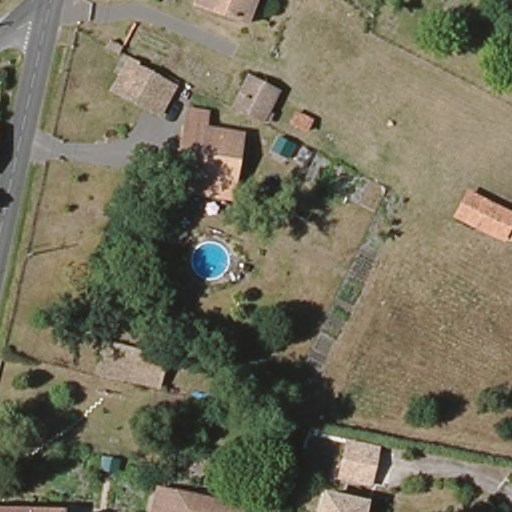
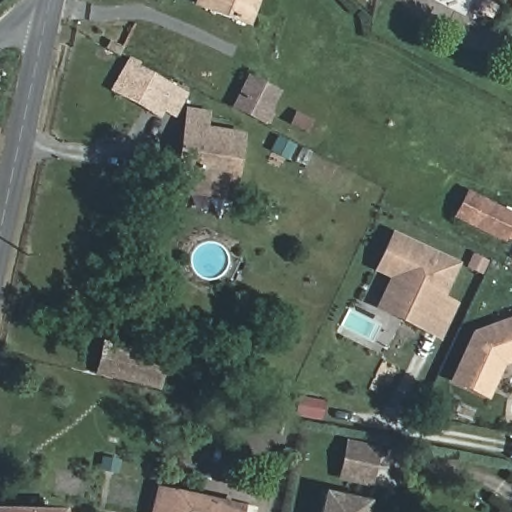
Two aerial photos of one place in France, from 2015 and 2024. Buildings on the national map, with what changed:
unchanged [(244,24),(199,8),(193,6),(195,0),(252,0),(244,24)]
unchanged [(169,82),(146,121),(131,111),(116,101),(137,64),(155,74),(169,82)]
unchanged [(277,92),(260,126),(231,108),(247,76),(277,92)]
unchanged [(171,164),(182,125),(187,109),(206,114),(202,130),(239,138),(229,175),(225,187),(175,173),(170,172),(171,164)]
demolished [(286,110),(301,117),(372,152),(360,173),(338,162),(275,131),(286,110)]
demolished [(399,164),(431,179),(429,185),(447,192),(437,214),(385,187),(399,164)]
unchanged [(463,193),(506,214),(493,242),(450,219),(463,193)]
new [(440,341),(375,308),(388,278),(372,271),(391,231),(460,263),(445,296),(458,302),(440,341)]
new [(489,401),(449,383),(472,331),(512,316),(512,363),(503,366),(489,401)]
unchanged [(103,343),(166,358),(157,391),(94,375),(103,343)]
unchanged [(376,447),(368,482),(340,477),(348,442),(376,447)]
unchanged [(118,463),(115,472),(101,468),(103,460),(118,463)]
demolished [(104,465),(101,474),(86,471),(89,462),(104,465)]
unchanged [(240,509),(240,512),(151,512),(156,491),(240,509)]
unchanged [(324,512),(327,492),(367,500),(365,512),(324,512)]

